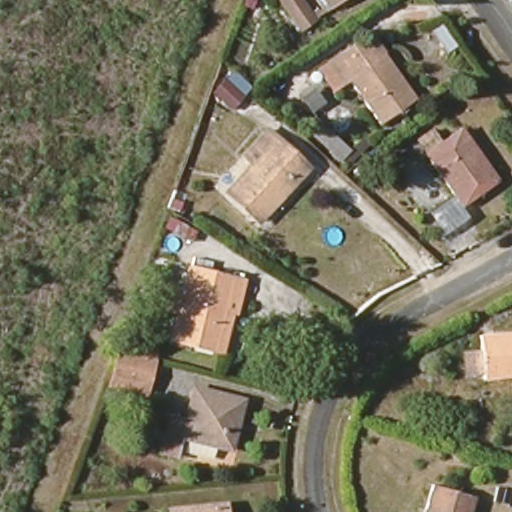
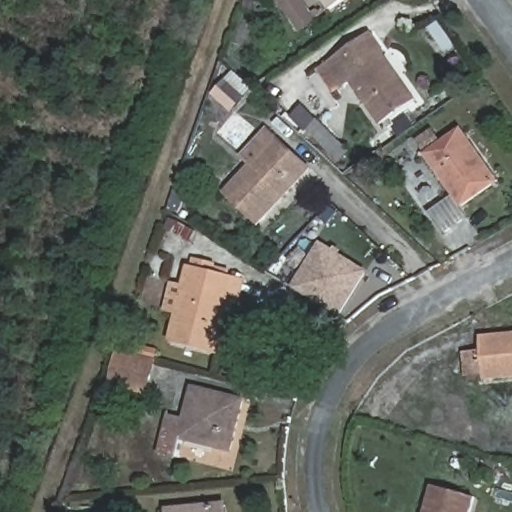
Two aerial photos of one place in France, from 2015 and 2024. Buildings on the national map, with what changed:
unchanged [(328,5),(324,0),(343,0),(331,9),(315,20),(300,31),(279,0),(302,0),(312,16),(313,15),(328,5)]
unchanged [(386,124),(354,79),(345,86),(339,90),(325,69),(330,65),(369,37),(384,57),(388,55),(421,100),(386,124)]
unchanged [(351,151),(340,162),(307,130),(317,119),(351,151)]
unchanged [(502,181),(468,206),(432,154),(433,154),(424,141),(438,131),(447,144),(466,130),(502,181)]
unchanged [(259,223),(228,194),(253,166),(244,157),(268,132),(309,170),(259,223)]
unchanged [(197,232),(192,242),(178,235),(183,224),(197,232)]
new [(293,287),(321,241),(370,272),(346,312),(336,313),(293,287)]
unchanged [(220,358),(195,352),(176,347),(195,271),(198,272),(200,263),(218,267),(216,276),(239,282),(220,358)]
unchanged [(512,333),(512,377),(485,380),(484,374),(466,376),(464,353),(482,352),(480,337),(512,333)]
unchanged [(146,395),(111,386),(119,353),(154,362),(146,395)]
unchanged [(231,448),(179,436),(175,455),(162,452),(170,418),(187,422),(195,390),(242,401),(231,448)]
unchanged [(426,512),(434,486),(474,497),(470,512),(426,512)]
unchanged [(169,512),(169,510),(225,505),(226,512),(169,512)]

